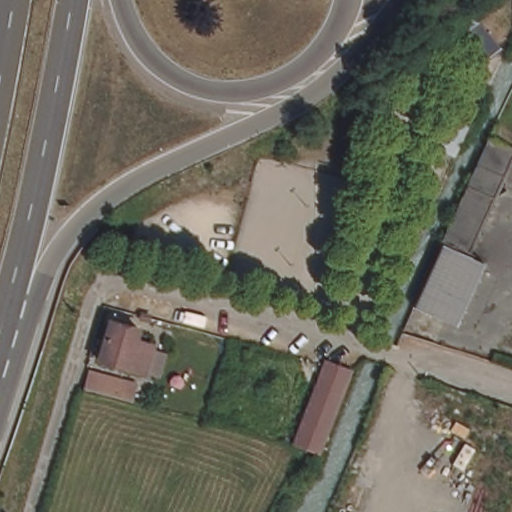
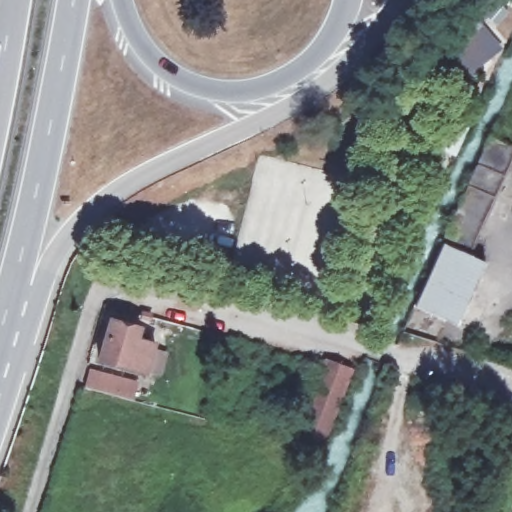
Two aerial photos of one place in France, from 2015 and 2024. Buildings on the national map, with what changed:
unchanged [(470,24),(476,18),(505,51),(475,76),(457,56),(440,36),(446,31),(463,16),(470,24)]
unchanged [(507,151),(461,255),(466,257),(440,318),(405,305),(480,139),(507,151)]
unchanged [(138,326),(135,336),(152,340),(151,345),(162,348),(157,368),(146,365),(145,367),(100,354),(110,318),(138,326)]
unchanged [(315,445),(294,440),(323,360),(344,365),(315,445)]
unchanged [(117,374),(116,380),(127,382),(124,396),(89,387),(95,367),(117,374)]

